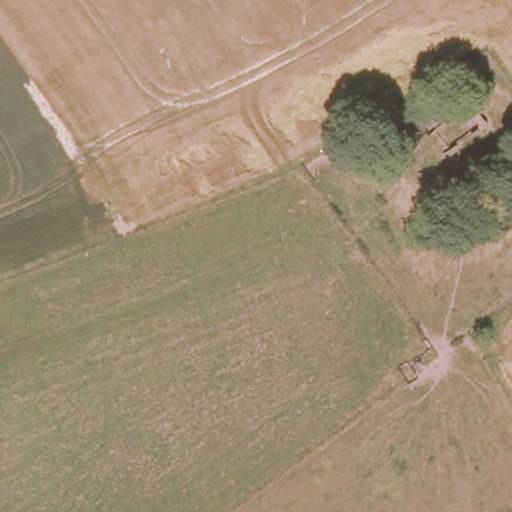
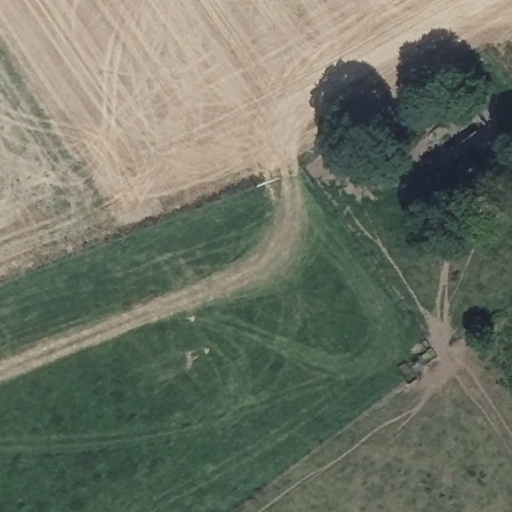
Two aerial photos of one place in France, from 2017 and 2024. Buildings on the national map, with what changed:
unchanged [(449,150),(434,130),(471,102),(486,123),(449,150)]

